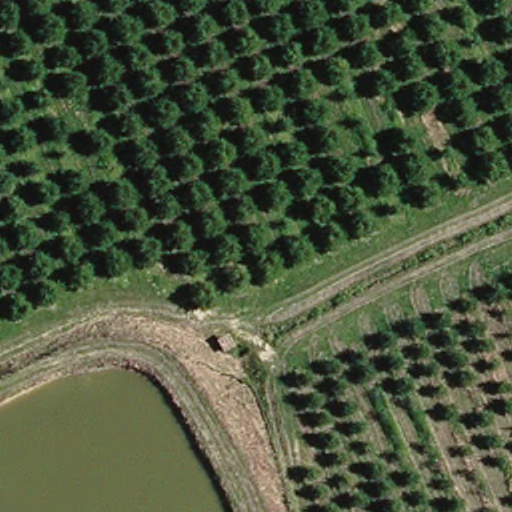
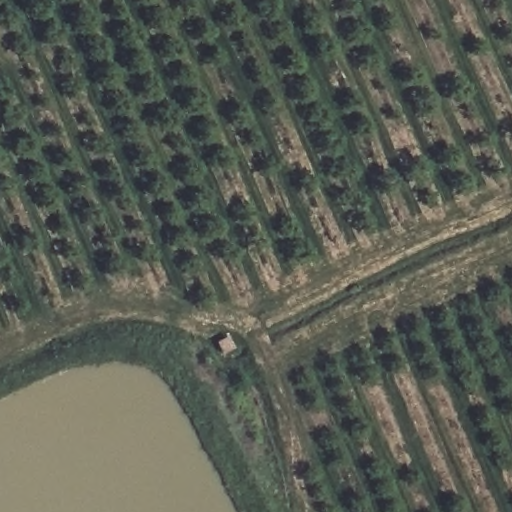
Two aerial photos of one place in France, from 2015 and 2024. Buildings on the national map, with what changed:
[]

